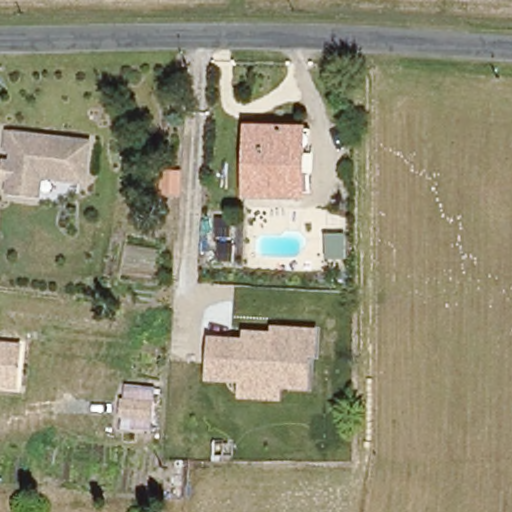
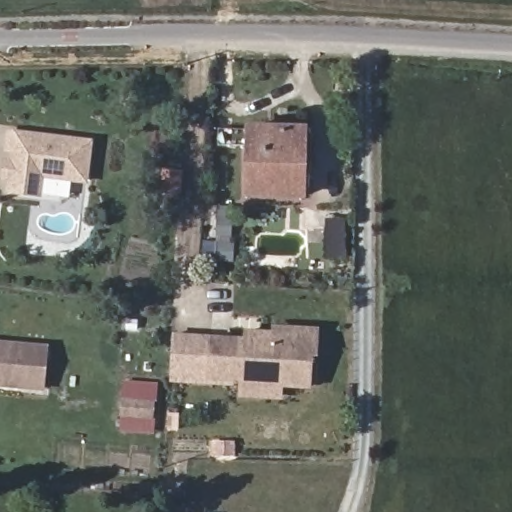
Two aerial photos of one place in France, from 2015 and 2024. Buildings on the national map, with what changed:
unchanged [(17,167),(16,162),(13,158),(13,146),(8,146),(8,130),(88,138),(83,178),(41,173),(39,193),(8,189),(10,177),(17,172),(17,167)]
unchanged [(301,191),(301,200),(248,199),(250,132),(311,132),(311,191),(301,191)]
unchanged [(211,334),(244,337),(245,328),(273,330),(274,325),(321,328),(319,356),(315,356),(312,389),(283,387),(284,399),(240,397),(240,386),(239,382),(207,379),(211,334)]
new [(173,333),(211,334),(207,379),(239,382),(240,386),(171,383),(173,333)]
unchanged [(16,384),(0,383),(0,340),(19,341),(16,384)]
new [(16,389),(16,384),(19,341),(48,345),(44,391),(16,389)]
unchanged [(159,387),(154,430),(120,427),(123,383),(159,387)]

